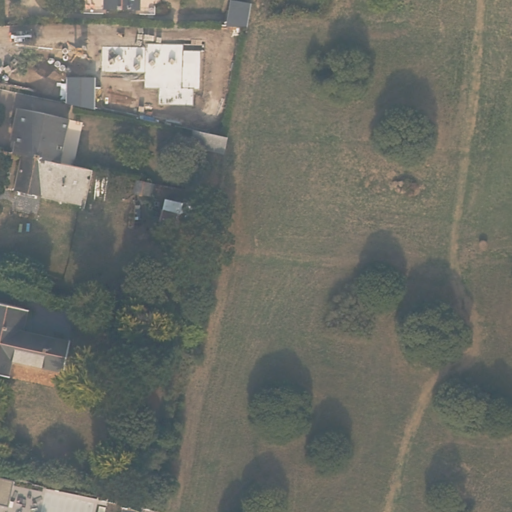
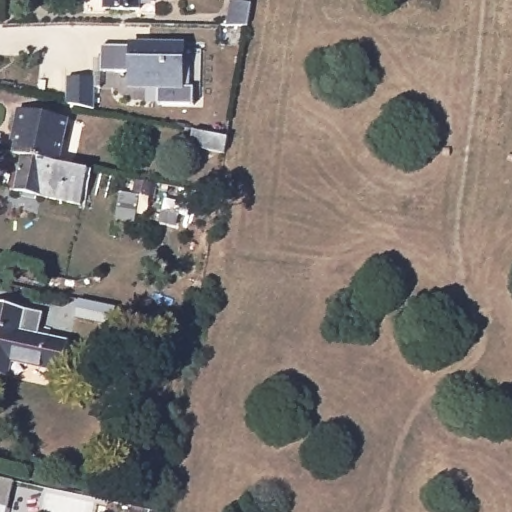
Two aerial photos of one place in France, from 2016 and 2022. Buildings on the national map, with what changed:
unchanged [(104,8),(104,0),(140,0),(140,8),(104,8)]
new [(185,42),(184,88),(195,88),(194,106),(157,105),(158,90),(128,89),(128,72),(102,71),(102,45),(129,46),(129,40),(185,42)]
demolished [(151,41),(207,54),(201,86),(186,82),(180,107),(139,99),(151,41)]
unchanged [(18,151),(23,127),(17,126),(21,107),(70,117),(61,160),(28,154),(18,151)]
unchanged [(227,151),(195,144),(198,129),(231,135),(227,151)]
unchanged [(28,154),(61,160),(91,166),(84,201),(20,190),(28,154)]
unchanged [(150,192),(136,189),(139,177),(152,180),(150,192)]
unchanged [(21,308),(16,331),(64,341),(59,370),(7,360),(3,375),(0,374),(0,304),(21,308)]
new [(12,478),(7,505),(0,503),(0,476),(12,478)]

